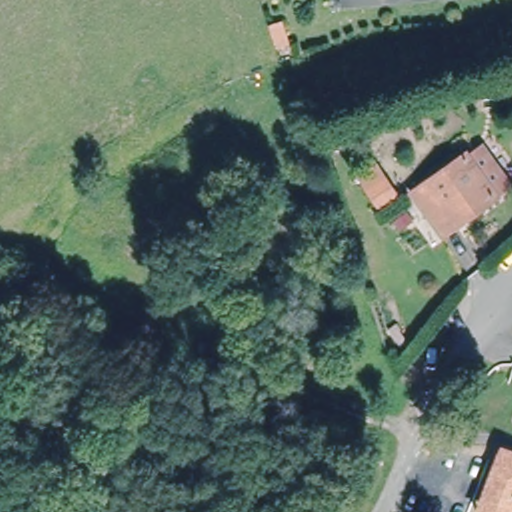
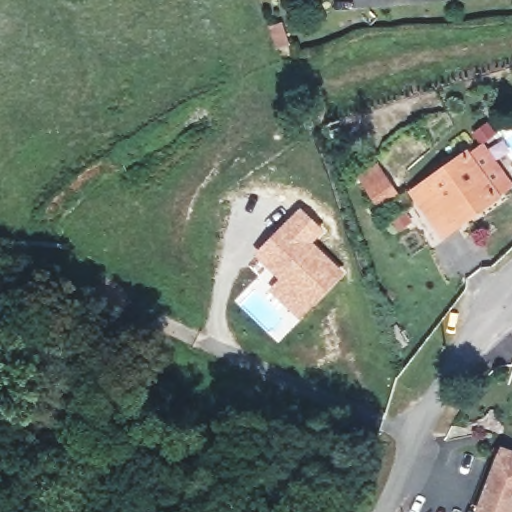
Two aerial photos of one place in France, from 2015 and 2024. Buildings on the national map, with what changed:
unchanged [(442,234),(412,193),(467,155),(496,197),(482,207),(471,215),(442,234)]
unchanged [(396,199),(376,210),(354,174),(375,166),(396,199)]
new [(300,205),(325,230),(314,241),(346,273),(300,319),(268,289),(278,278),(254,253),(300,205)]
unchanged [(501,444),(512,448),(512,512),(475,512),(501,444)]

